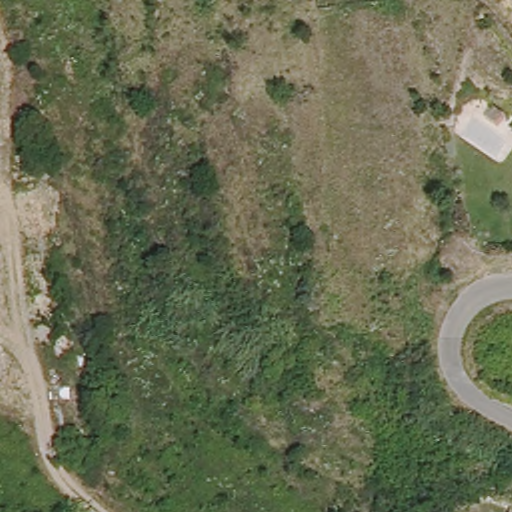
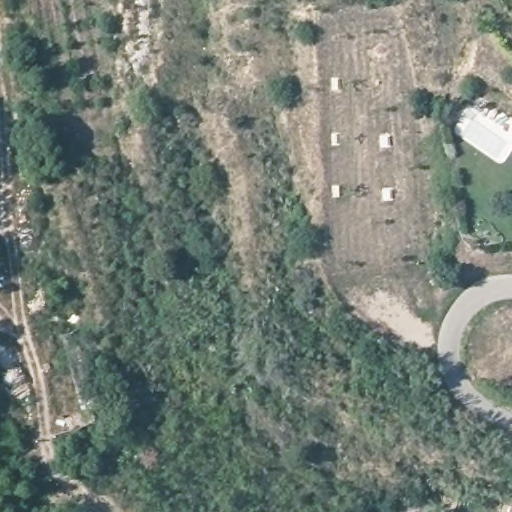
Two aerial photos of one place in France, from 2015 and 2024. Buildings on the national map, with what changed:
unchanged [(512,512),(510,512),(512,508),(512,512)]

